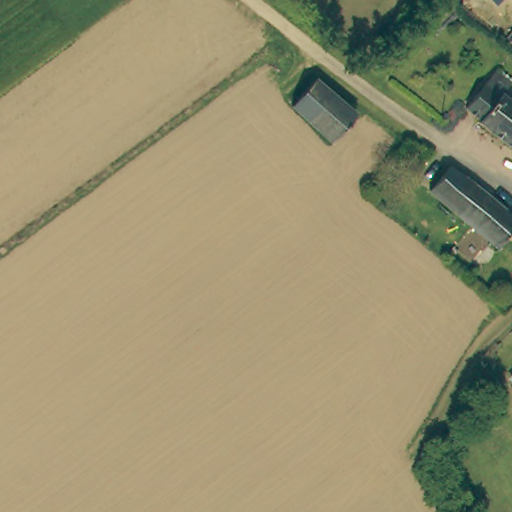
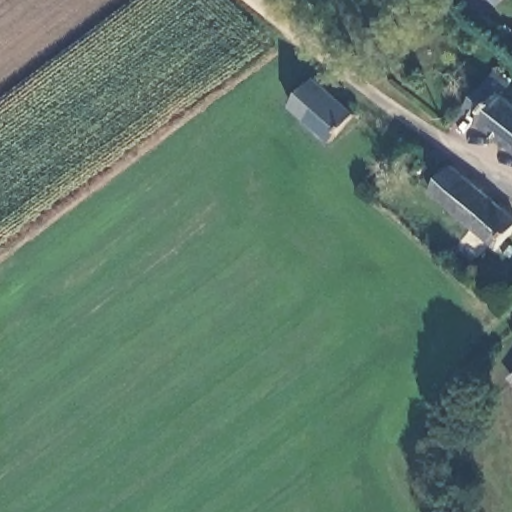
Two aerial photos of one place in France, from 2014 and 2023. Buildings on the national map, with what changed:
unchanged [(491,0),(503,0),(497,6),(491,0)]
unchanged [(481,115),(464,100),(482,75),(501,89),(512,98),(512,146),(477,120),(481,115)]
unchanged [(331,142),(292,105),(316,79),(356,114),(331,142)]
unchanged [(496,231),(492,235),(425,182),(443,157),(512,213),(511,215),(512,216),(512,242),(511,244),(496,231)]

